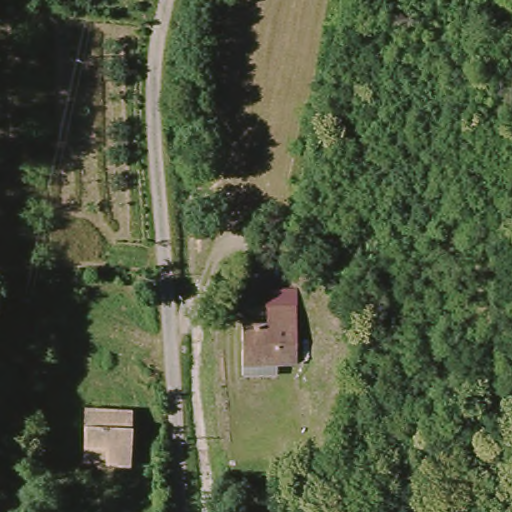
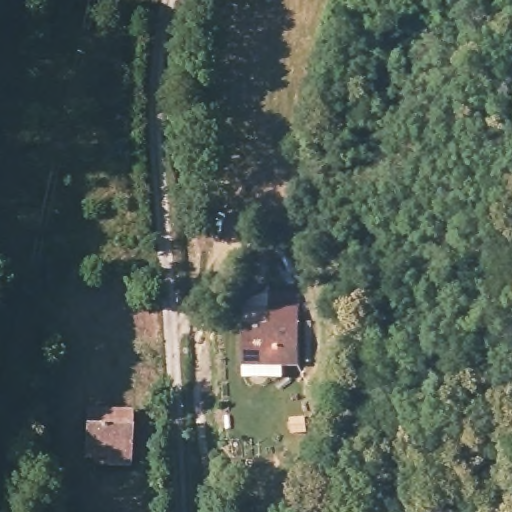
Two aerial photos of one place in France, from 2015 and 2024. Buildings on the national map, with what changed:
unchanged [(267,313),(297,313),(299,374),(244,373),(244,332),(268,332),(267,313)]
unchanged [(133,416),(128,473),(87,467),(87,413),(133,416)]

